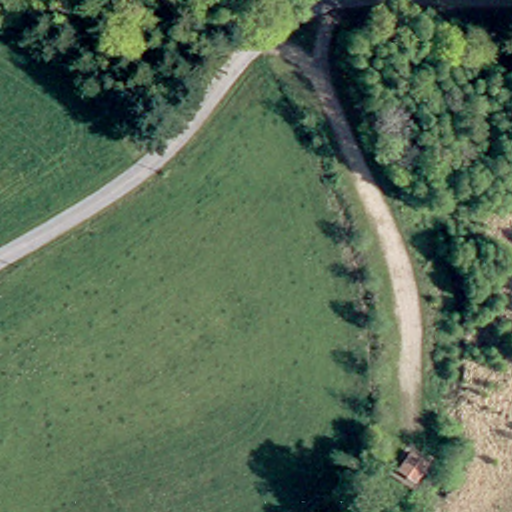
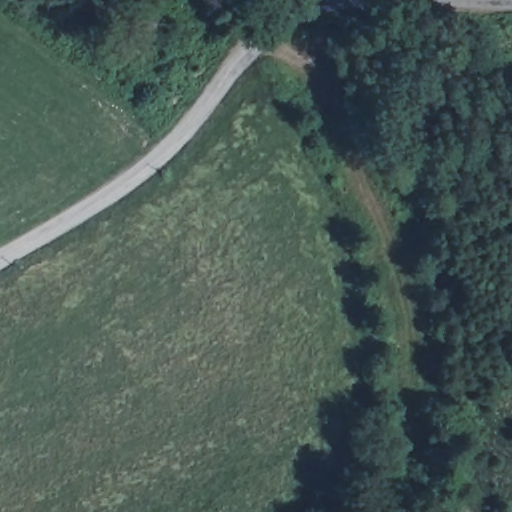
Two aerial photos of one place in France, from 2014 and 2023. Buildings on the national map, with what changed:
unchanged [(430,461),(417,490),(388,475),(402,451),(430,461)]

